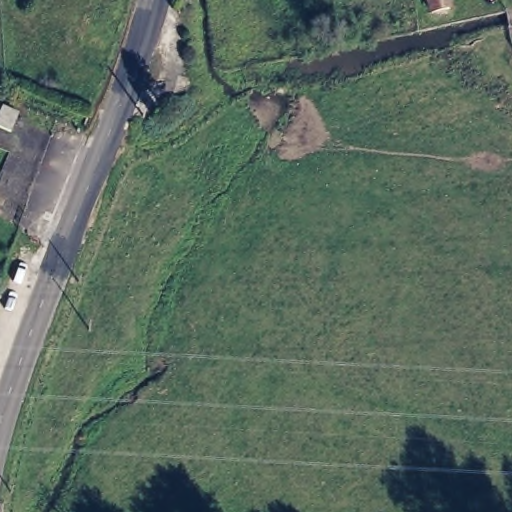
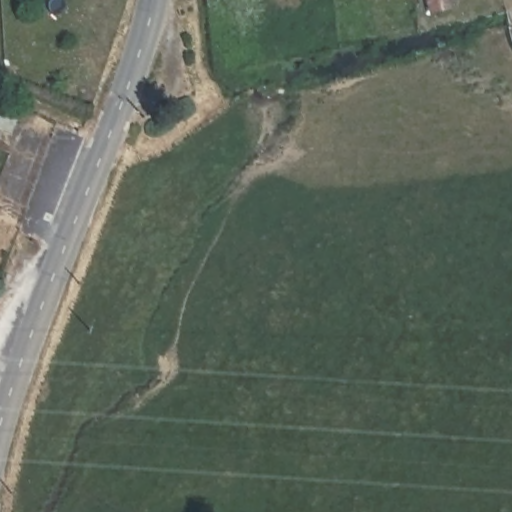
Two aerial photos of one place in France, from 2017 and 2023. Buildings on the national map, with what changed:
unchanged [(341,0),(333,1),(333,0),(341,0)]
unchanged [(437,8),(436,0),(454,0),(455,6),(437,8)]
unchanged [(0,129),(0,101),(25,114),(15,135),(0,129)]

